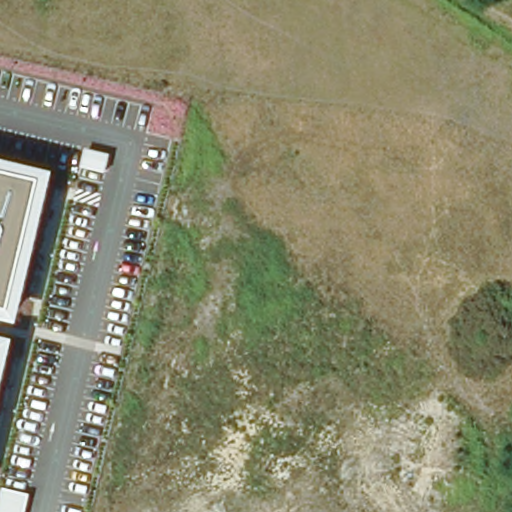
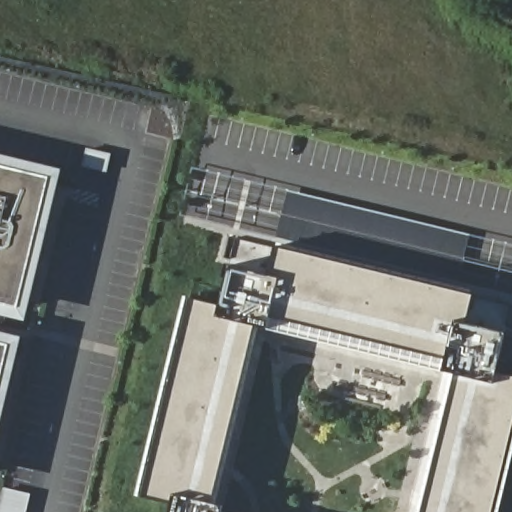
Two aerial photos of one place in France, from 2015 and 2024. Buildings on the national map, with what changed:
unchanged [(113,153),(107,175),(82,170),(87,148),(113,153)]
unchanged [(27,322),(0,316),(0,155),(62,170),(27,322)]
new [(512,245),(512,297),(180,217),(193,168),(512,245)]
new [(169,504),(139,496),(188,297),(219,305),(228,266),(269,276),(275,248),(471,295),(464,323),(506,333),(497,373),(512,376),(512,425),(492,512),(421,512),(452,376),(253,327),(211,503),(223,506),(222,512),(168,512),(169,504)]
unchanged [(0,429),(0,333),(21,338),(0,429)]
unchanged [(27,512),(0,512),(0,506),(4,488),(31,494),(27,512)]

